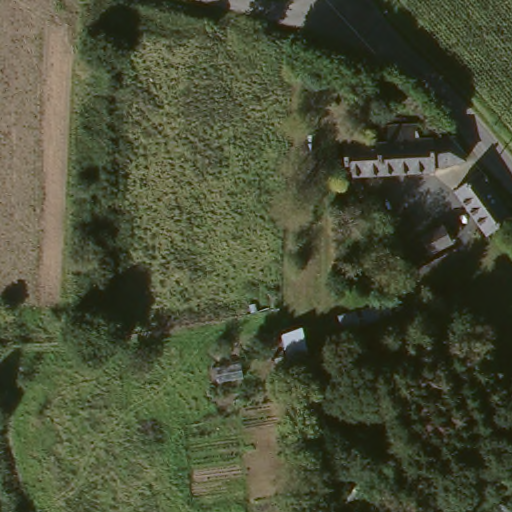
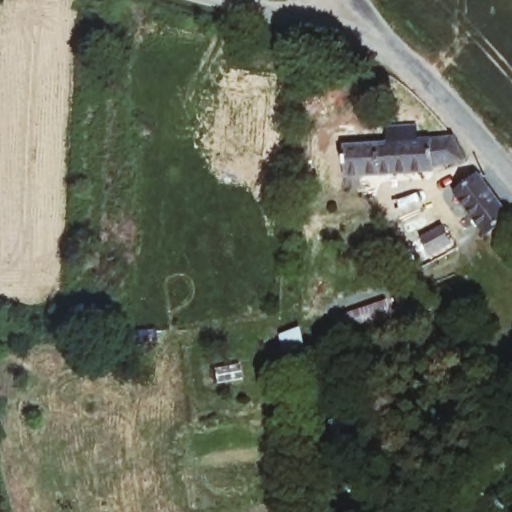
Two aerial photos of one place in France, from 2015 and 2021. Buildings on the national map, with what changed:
unchanged [(339,147),(384,142),(383,127),(411,127),(414,140),(446,139),(456,162),(429,168),(429,172),(407,174),(355,176),(356,188),(342,189),(339,147)]
unchanged [(479,169),(512,213),(489,227),(458,185),(479,169)]
unchanged [(438,226),(447,242),(427,254),(417,237),(438,226)]
unchanged [(332,318),(381,302),(385,317),(338,332),(332,318)]
unchanged [(296,332),(303,367),(281,372),(274,337),(296,332)]
unchanged [(360,497),(342,501),(339,488),(358,485),(360,497)]

